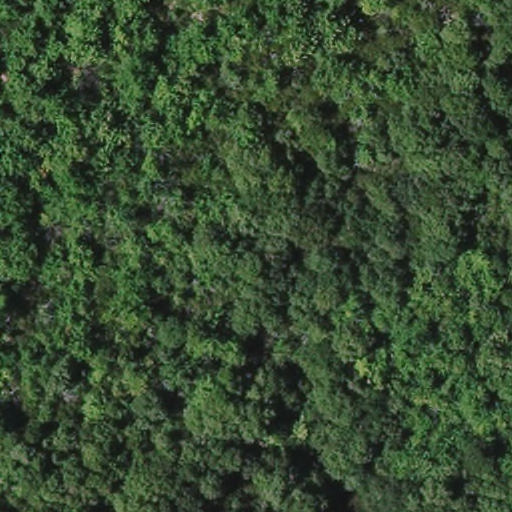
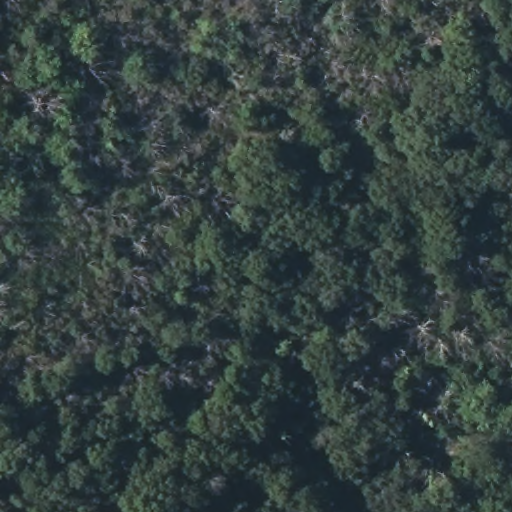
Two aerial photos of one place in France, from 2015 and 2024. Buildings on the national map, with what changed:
unchanged [(39,107),(46,128),(15,141),(7,124),(4,117),(37,103),(39,107)]

